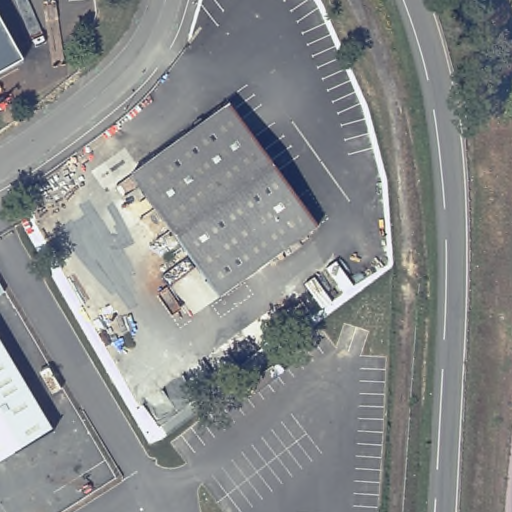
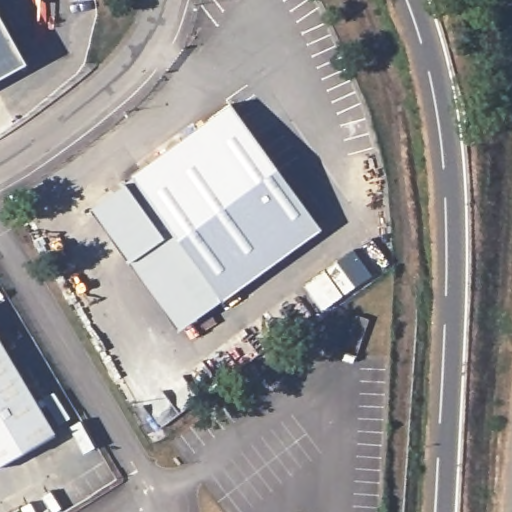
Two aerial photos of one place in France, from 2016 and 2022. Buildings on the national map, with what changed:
unchanged [(27,57),(0,72),(0,12),(27,57)]
unchanged [(230,105),(318,225),(221,296),(133,174),(230,105)]
new [(175,329),(87,206),(133,174),(221,296),(175,329)]
unchanged [(53,431),(0,463),(0,342),(53,431)]

